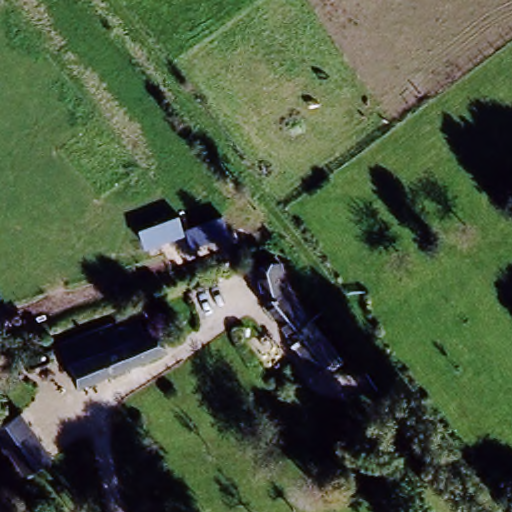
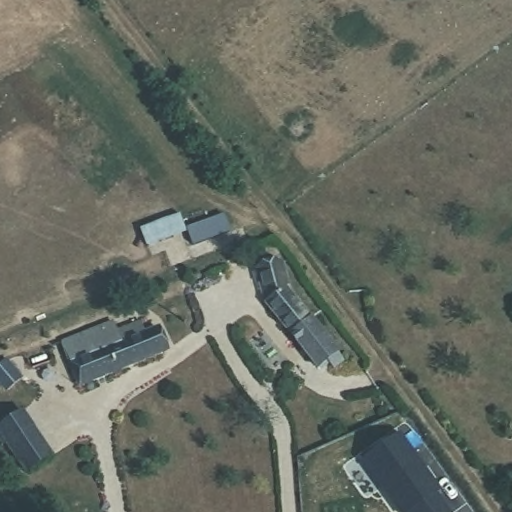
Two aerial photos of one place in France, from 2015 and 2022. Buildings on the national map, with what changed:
new [(179,215),(185,233),(149,247),(141,229),(179,215)]
unchanged [(255,267),(280,259),(288,283),(282,284),(333,363),(323,369),(318,361),(308,368),(264,299),(255,267)]
unchanged [(147,335),(154,333),(164,358),(80,389),(63,344),(114,324),(119,334),(143,324),(147,335)]
demolished [(507,451),(492,428),(512,416),(512,447),(507,451)]
unchanged [(28,417),(54,462),(28,477),(2,432),(28,417)]
new [(441,490),(438,493),(452,512),(398,512),(359,459),(397,430),(441,490)]

